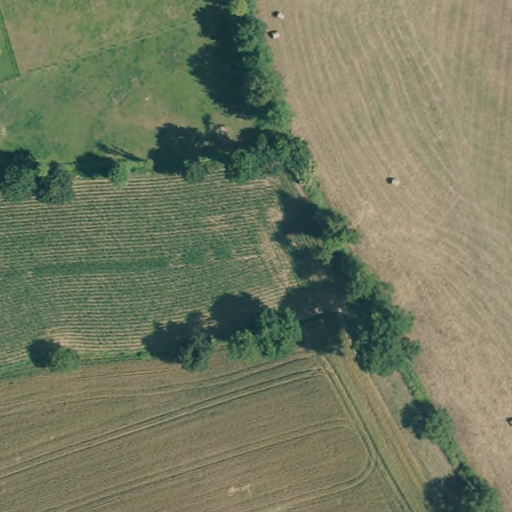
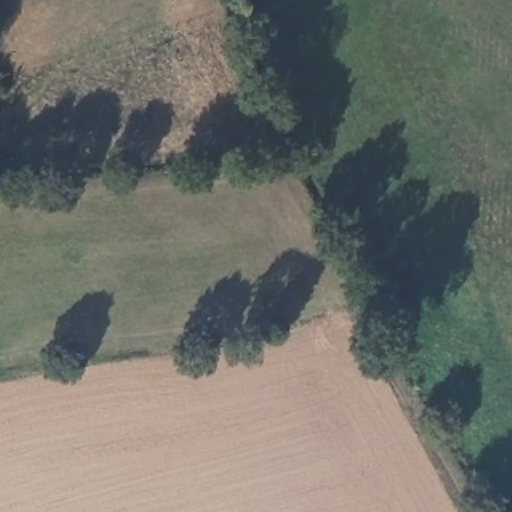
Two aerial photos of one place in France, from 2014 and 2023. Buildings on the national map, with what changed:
[]

